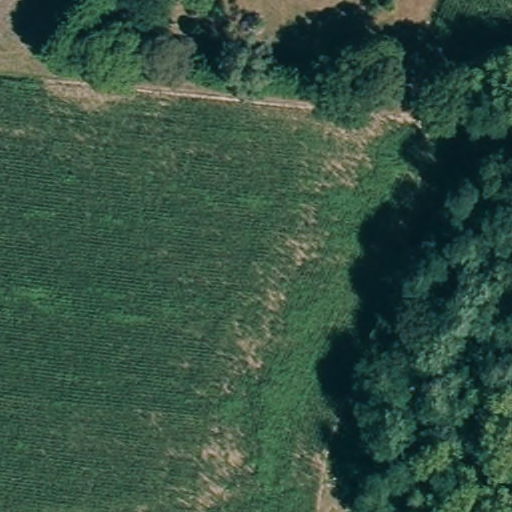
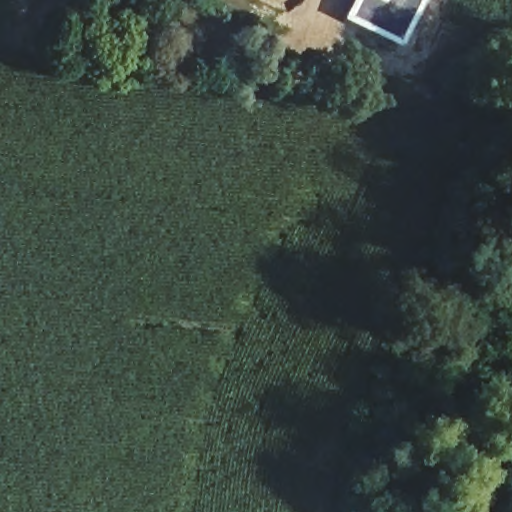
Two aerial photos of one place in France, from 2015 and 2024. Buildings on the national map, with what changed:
new [(427,0),(405,48),(346,20),(355,0),(427,0)]

